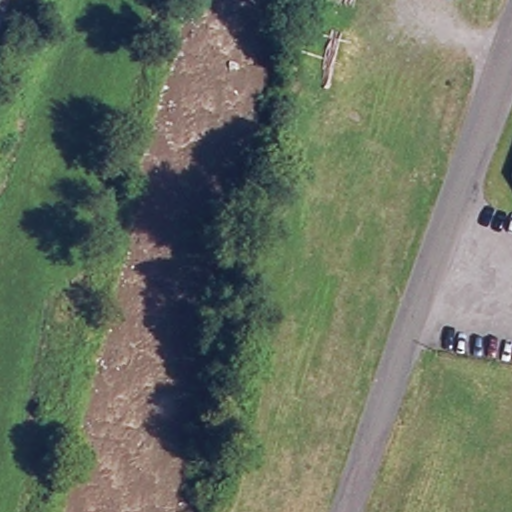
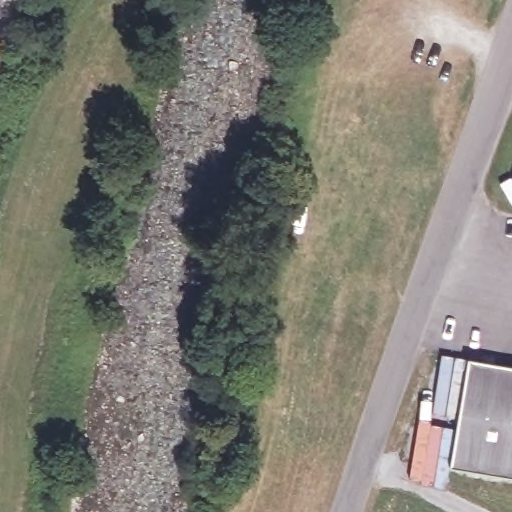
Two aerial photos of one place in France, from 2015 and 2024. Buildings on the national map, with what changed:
new [(512,478),(453,468),(470,360),(512,367),(512,478)]

